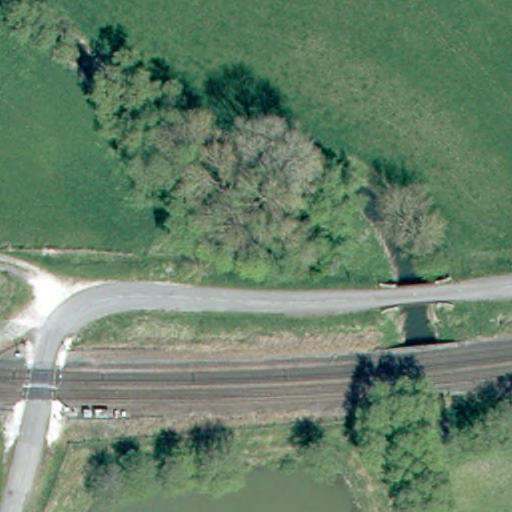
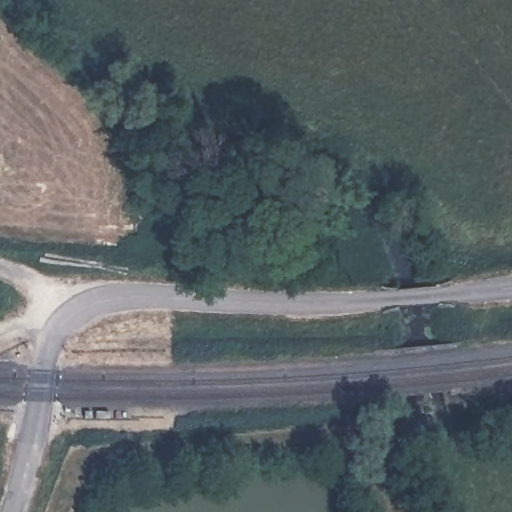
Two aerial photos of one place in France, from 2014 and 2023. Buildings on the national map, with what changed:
[]

